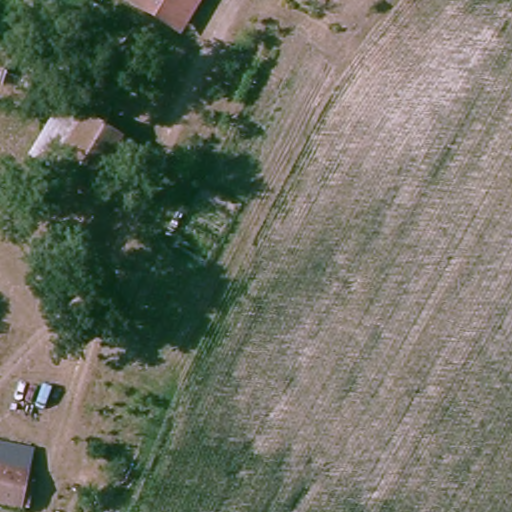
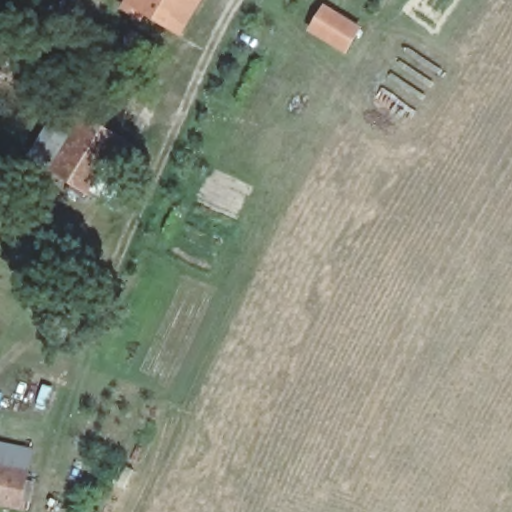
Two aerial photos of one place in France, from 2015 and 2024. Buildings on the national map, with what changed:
unchanged [(206,0),(184,37),(129,2),(130,0),(206,0)]
new [(365,26),(346,55),(307,32),(323,3),(365,26)]
new [(145,12),(166,27),(153,45),(132,31),(145,12)]
unchanged [(92,186),(83,179),(46,152),(72,117),(109,144),(120,152),(92,186)]
unchanged [(31,448),(23,510),(0,504),(0,441),(31,448)]

